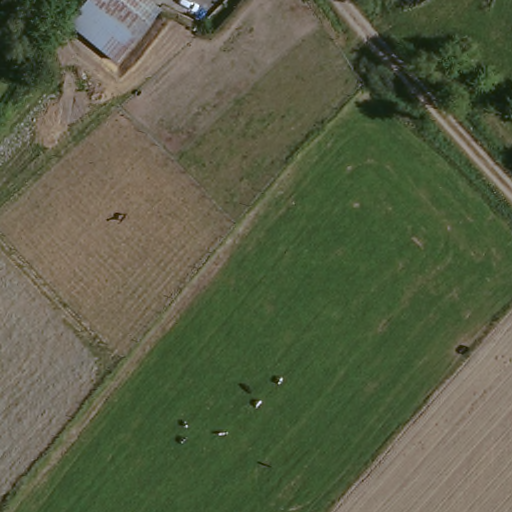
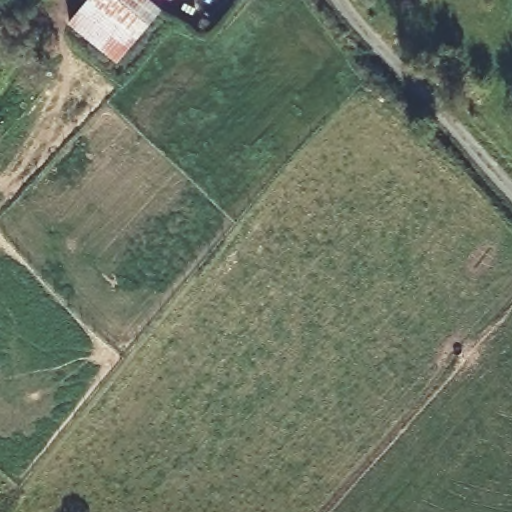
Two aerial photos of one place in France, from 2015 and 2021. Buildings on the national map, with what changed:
unchanged [(123,56),(122,57),(78,21),(94,0),(155,0),(163,7),(123,56)]

